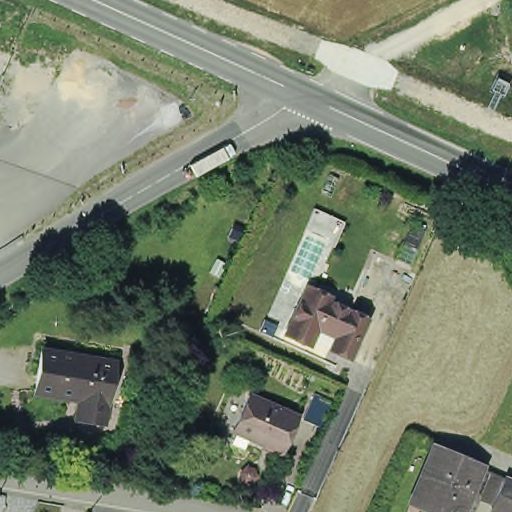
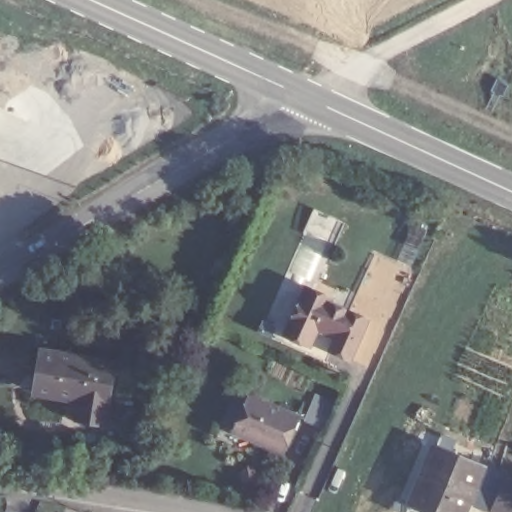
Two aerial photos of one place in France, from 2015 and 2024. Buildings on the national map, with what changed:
unchanged [(314,282),(337,293),(335,299),(373,317),(355,354),(337,345),(342,333),(323,325),(316,339),(292,328),(314,282)]
unchanged [(88,413),(91,395),(45,387),(53,346),(124,358),(113,418),(88,413)]
unchanged [(296,420),(309,391),(325,400),(314,427),(296,420)]
unchanged [(224,432),(240,396),(290,417),(275,452),(258,444),(257,446),(224,432)]
unchanged [(426,449),(461,465),(472,470),(454,512),(424,512),(402,502),(426,449)]
unchanged [(492,508),(505,478),(512,481),(512,511),(498,505),(495,510),(492,508)]

